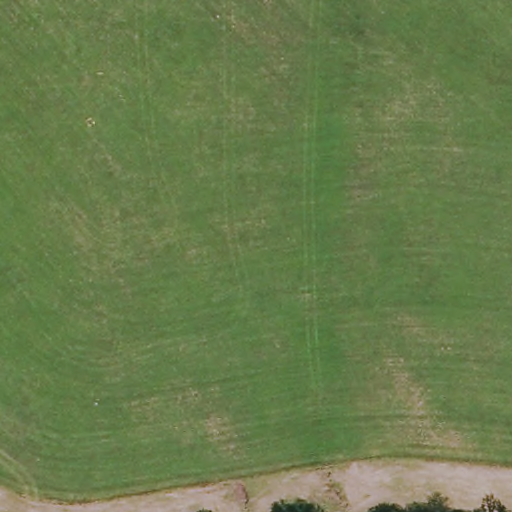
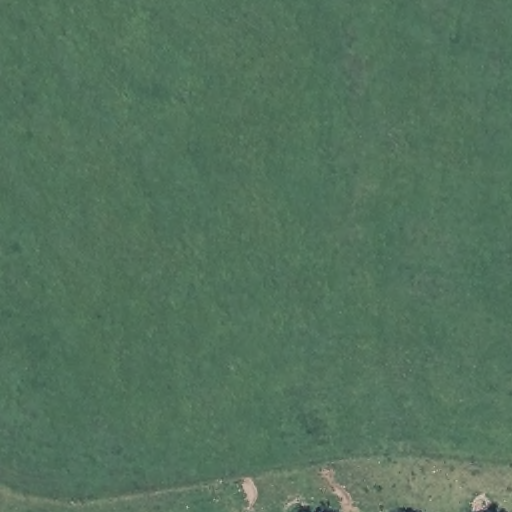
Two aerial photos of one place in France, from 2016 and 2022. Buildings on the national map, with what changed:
[]

